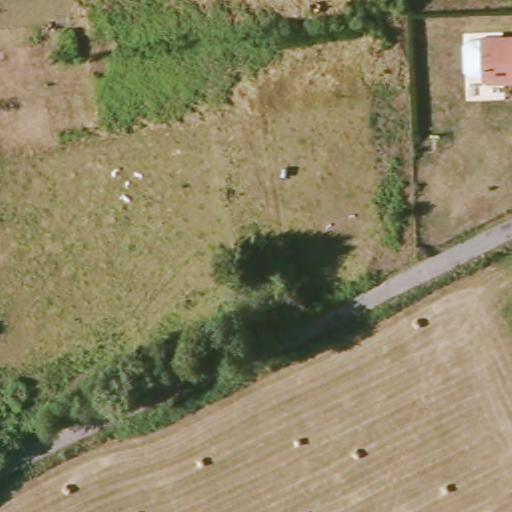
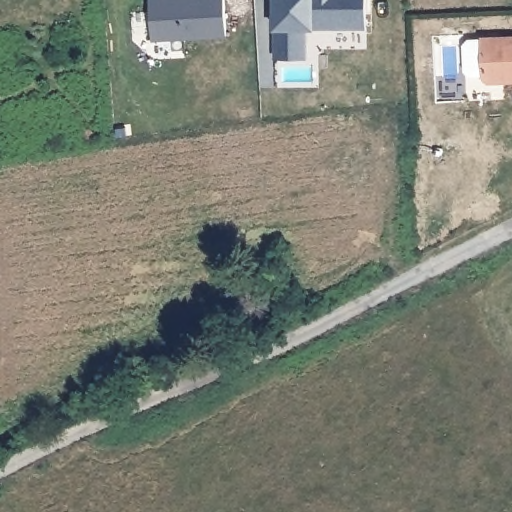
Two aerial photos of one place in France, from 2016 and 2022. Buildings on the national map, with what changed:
new [(151,39),(152,0),(225,0),(226,36),(151,39)]
new [(306,34),(306,57),(276,58),(276,33),(268,34),(267,0),(367,0),(368,29),(306,34)]
unchanged [(508,80),(493,80),(488,75),(488,74),(474,74),(470,69),(469,44),(473,39),(486,38),(486,37),(512,36),(512,75),(508,80)]

